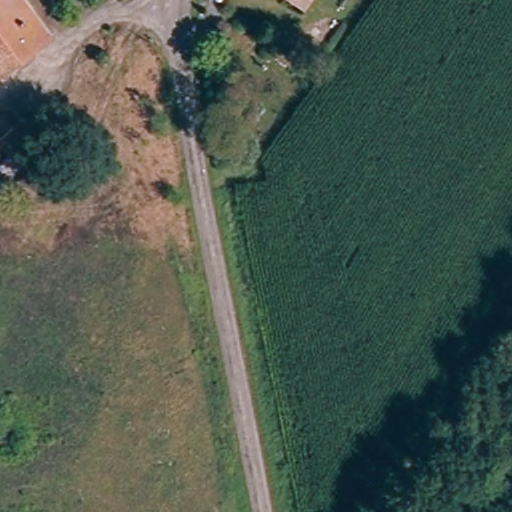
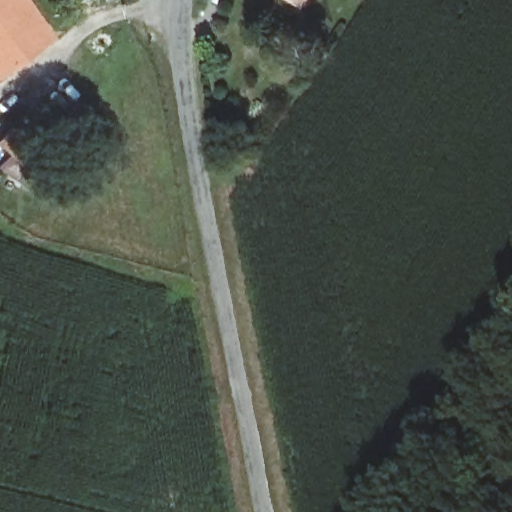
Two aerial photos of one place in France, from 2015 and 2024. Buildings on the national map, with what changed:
unchanged [(19,0),(47,40),(0,73),(0,0),(19,0)]
unchanged [(290,0),(315,0),(307,11),(290,0)]
unchanged [(39,152),(22,168),(0,144),(14,129),(39,152)]

